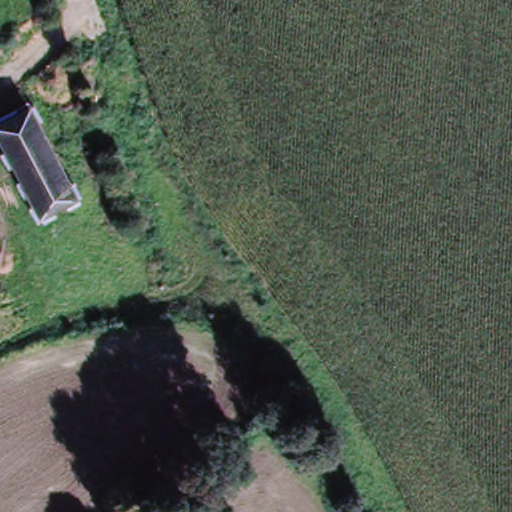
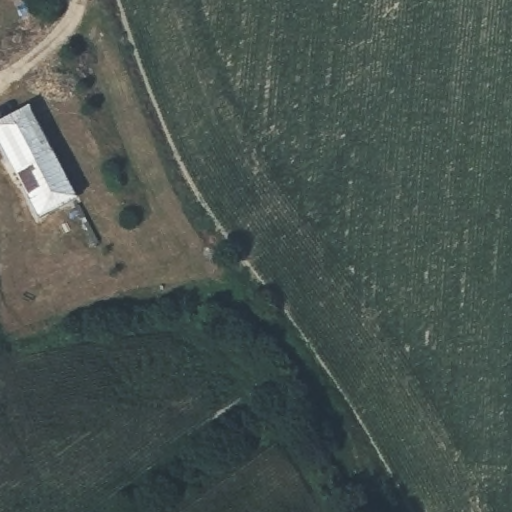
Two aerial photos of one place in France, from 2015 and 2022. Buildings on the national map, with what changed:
unchanged [(35,222),(0,152),(0,129),(26,115),(71,204),(35,222)]

